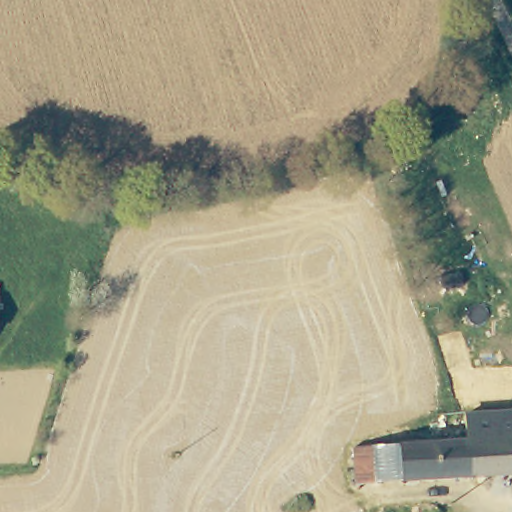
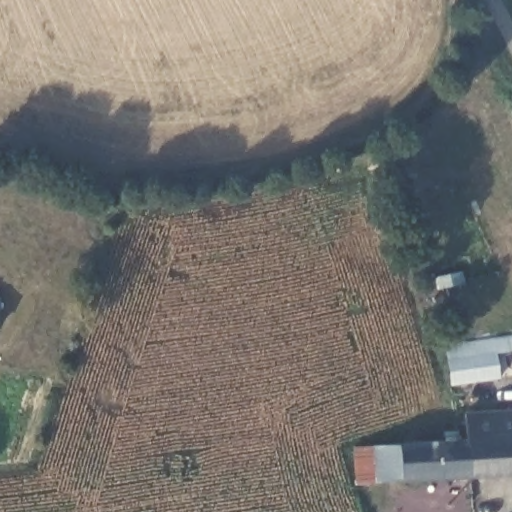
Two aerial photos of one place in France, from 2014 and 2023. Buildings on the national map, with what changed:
new [(502,378),(450,386),(446,345),(512,334),(512,351),(498,354),(502,378)]
unchanged [(512,413),(512,473),(469,475),(465,439),(464,413),(512,413)]
unchanged [(465,439),(469,475),(377,479),(356,480),(354,444),(375,444),(465,439)]

